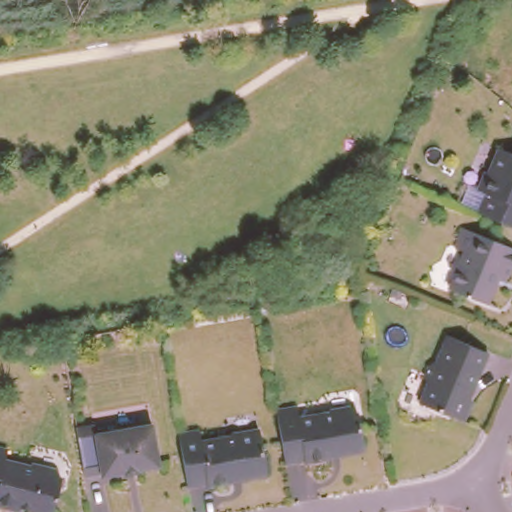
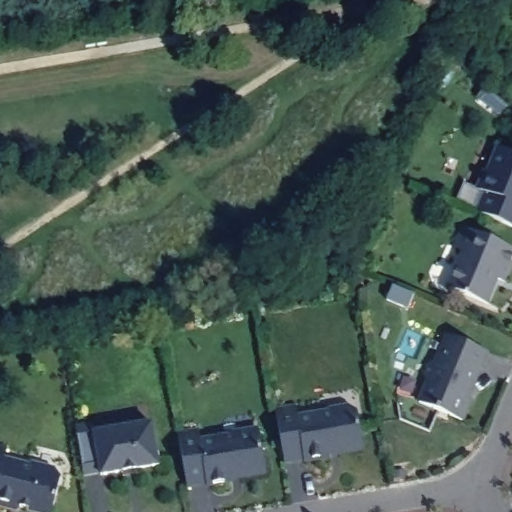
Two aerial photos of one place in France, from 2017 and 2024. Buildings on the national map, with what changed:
unchanged [(477,202),(485,182),(476,179),(484,161),(487,162),(498,137),(512,144),(512,217),(477,202)]
unchanged [(500,277),(490,272),(480,296),(443,281),(458,244),(448,240),(456,220),(512,244),(512,249),(500,277)]
unchanged [(471,400),(463,420),(418,401),(426,380),(424,372),(426,365),(434,362),(446,333),(462,340),(486,350),(476,373),(466,398),(471,400)]
unchanged [(295,406),(296,418),(323,414),(326,410),(349,407),(355,411),(361,448),(337,452),(337,449),(330,451),(327,457),(302,461),(302,459),(283,462),(275,410),(295,406)]
unchanged [(91,422),(93,430),(150,421),(156,463),(135,466),(120,469),(99,472),(98,470),(81,473),(74,425),(91,422)]
unchanged [(197,434),(199,446),(226,442),(228,438),(257,434),(264,476),(240,480),(240,477),(233,479),(230,485),(205,489),(205,487),(185,490),(177,438),(197,434)]
unchanged [(3,461),(29,468),(30,465),(56,472),(60,478),(51,512),(36,512),(26,509),(17,507),(15,508),(0,505),(0,448),(6,449),(3,461)]

